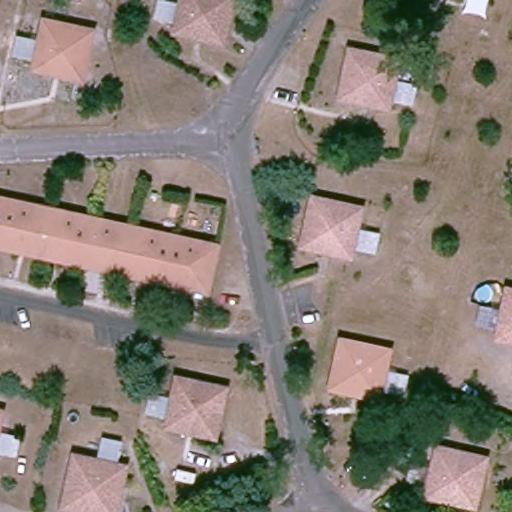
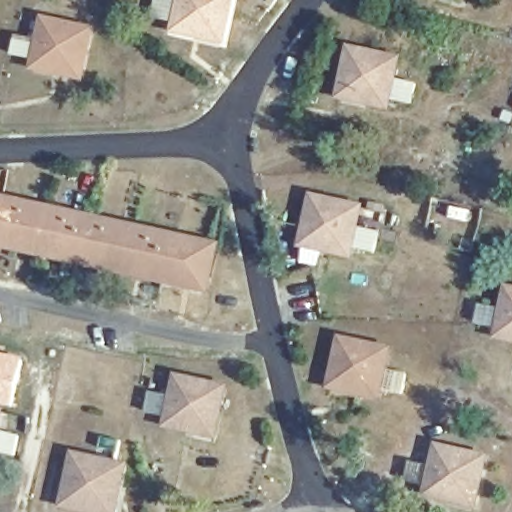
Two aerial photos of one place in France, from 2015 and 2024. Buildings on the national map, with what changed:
unchanged [(175,29),(181,0),(229,0),(221,39),(175,29)]
unchanged [(41,42),(45,22),(91,32),(83,75),(36,65),(10,59),(15,37),(41,42)]
unchanged [(390,101),(341,90),(350,44),(400,54),(390,101)]
unchanged [(352,255),(303,244),(313,197),(361,207),(352,255)]
unchanged [(0,253),(0,205),(13,208),(3,254),(0,253)]
unchanged [(47,263),(3,254),(13,208),(58,217),(47,263)]
unchanged [(86,271),(47,263),(58,217),(96,225),(86,271)]
unchanged [(130,280),(86,271),(96,225),(141,235),(130,280)]
unchanged [(170,288),(130,280),(141,235),(179,243),(170,288)]
unchanged [(209,297),(170,288),(179,243),(218,251),(209,297)]
unchanged [(500,329),(508,285),(512,286),(512,332),(500,329)]
unchanged [(405,399),(381,394),(381,397),(337,386),(348,337),(391,347),(387,368),(410,373),(405,399)]
new [(0,404),(0,354),(25,359),(14,407),(0,404)]
unchanged [(209,435),(165,425),(175,380),(220,389),(209,435)]
unchanged [(0,437),(0,411),(6,412),(0,437)]
unchanged [(66,505),(76,457),(99,462),(104,439),(121,442),(116,465),(126,468),(117,512),(100,512),(66,505)]
unchanged [(440,446),(489,456),(476,505),(431,496),(432,490),(409,486),(413,463),(436,468),(440,446)]

